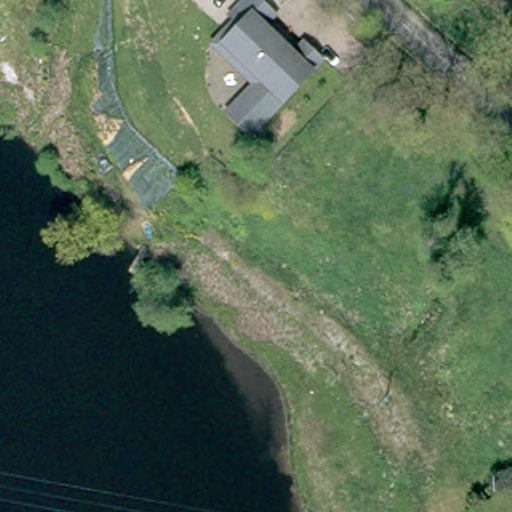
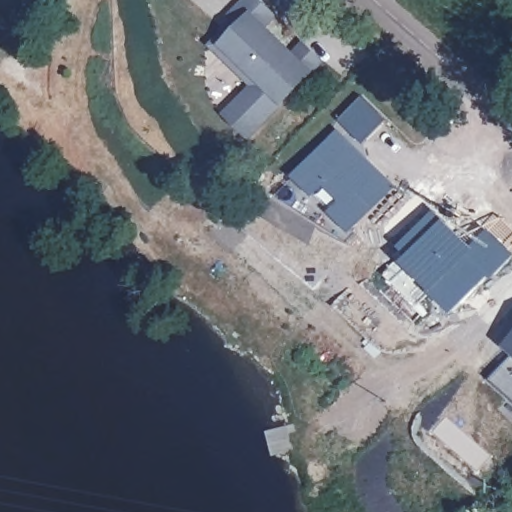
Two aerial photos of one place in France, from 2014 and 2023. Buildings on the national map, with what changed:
unchanged [(224,112),(246,91),(204,50),(235,20),(227,14),(242,0),(263,0),(279,15),(266,26),(293,50),(304,42),(326,65),(315,75),(250,140),(224,112)]
new [(365,99),(389,123),(365,146),(342,123),(365,99)]
new [(340,135),(359,152),(360,157),(365,163),(367,160),(395,190),(354,232),(335,215),(346,204),(327,185),(317,195),(298,177),(340,135)]
new [(433,291),(439,285),(412,260),(415,257),(403,247),(436,214),(462,237),(457,242),(469,254),(489,232),(512,253),(512,258),(497,275),(491,271),(454,310),(433,291)]
new [(512,389),(494,373),(512,353),(512,389)]

